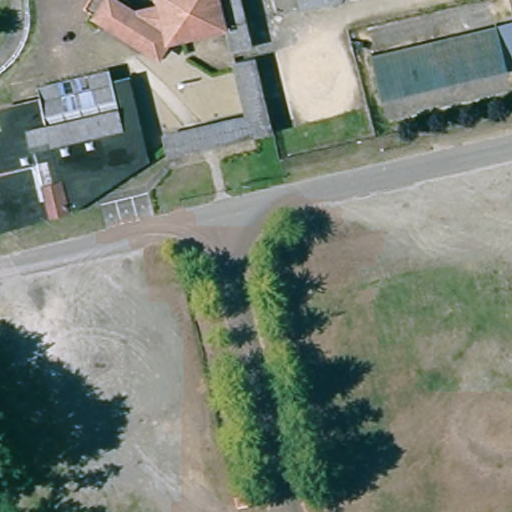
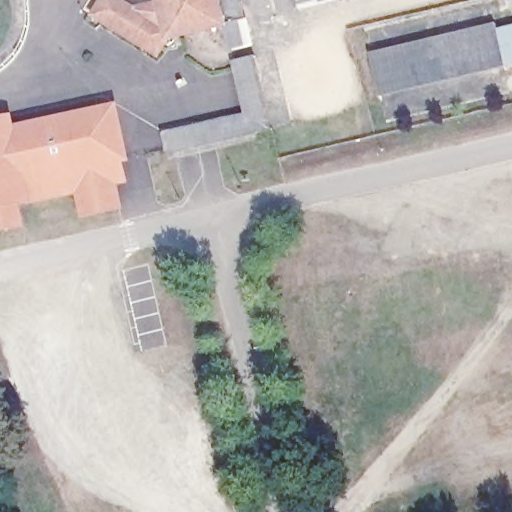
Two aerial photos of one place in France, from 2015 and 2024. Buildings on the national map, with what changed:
unchanged [(235,50),(228,17),(225,17),(168,30),(158,44),(96,8),(101,0),(134,0),(136,1),(141,0),(242,0),(245,11),(245,13),(253,47),(235,50)]
unchanged [(304,6),(303,0),(328,0),(304,6)]
unchanged [(498,29),(505,60),(382,90),(374,59),(498,29)]
unchanged [(224,121),(250,115),(237,58),(254,54),(272,126),(254,131),(253,126),(227,133),(169,146),(166,135),(224,121)]
demolished [(145,155),(76,207),(71,181),(45,187),(50,215),(0,225),(0,127),(5,126),(0,106),(0,104),(46,94),(53,125),(125,110),(118,78),(130,76),(145,155)]
new [(15,125),(118,102),(131,161),(125,164),(129,184),(118,185),(124,209),(81,219),(75,195),(33,203),(22,205),(26,228),(0,234),(0,117),(13,115),(15,125)]

